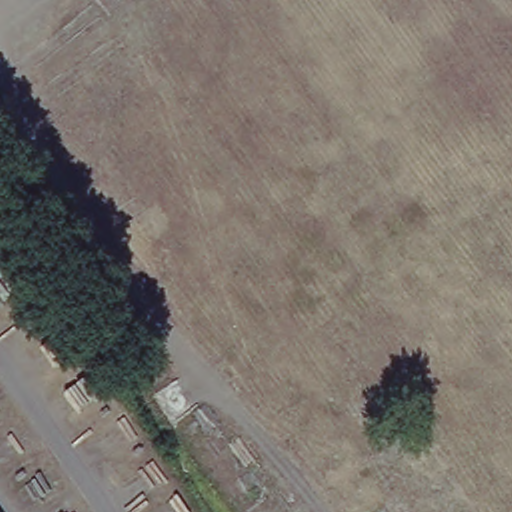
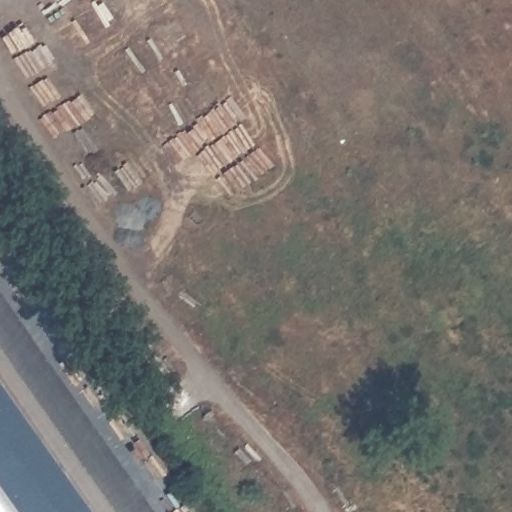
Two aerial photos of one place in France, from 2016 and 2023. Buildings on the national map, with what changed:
new [(88,512),(17,512),(0,488),(0,388),(88,512)]
new [(17,512),(0,512),(0,488),(17,512)]

